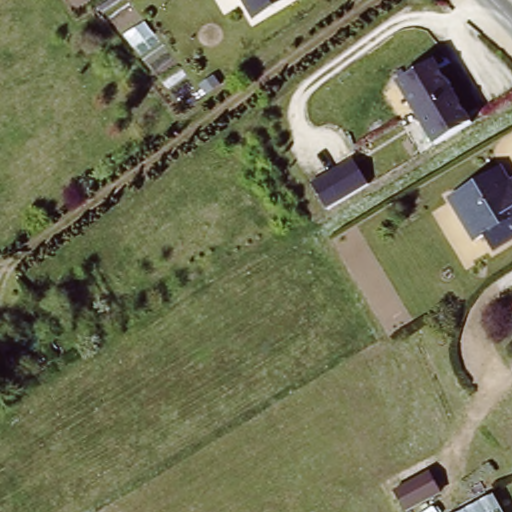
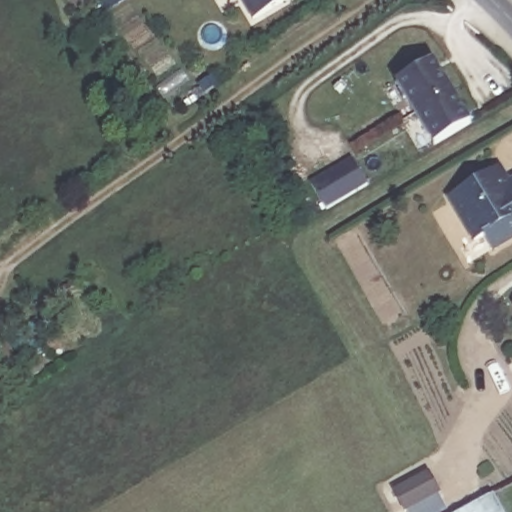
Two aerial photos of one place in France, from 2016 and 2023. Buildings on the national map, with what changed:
unchanged [(237,0),(286,0),(249,22),(237,0)]
unchanged [(395,84),(431,64),(463,125),(427,147),(395,84)]
unchanged [(322,174),(348,161),(361,190),(337,205),(322,174)]
unchanged [(491,245),(483,235),(471,241),(447,196),(502,165),(510,177),(512,176),(512,234),(491,245)]
unchanged [(394,489),(425,472),(437,492),(403,509),(394,489)]
unchanged [(506,512),(467,512),(497,495),(506,512)]

